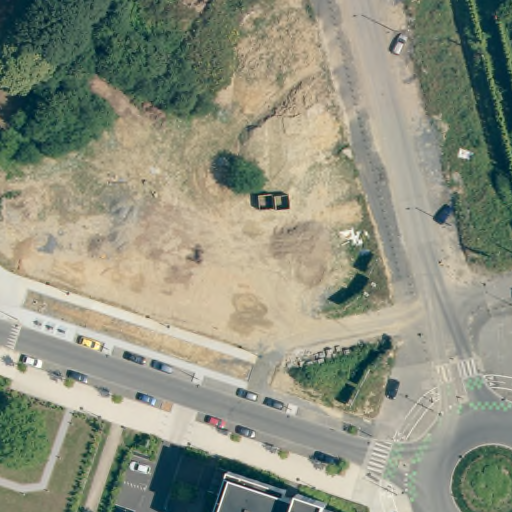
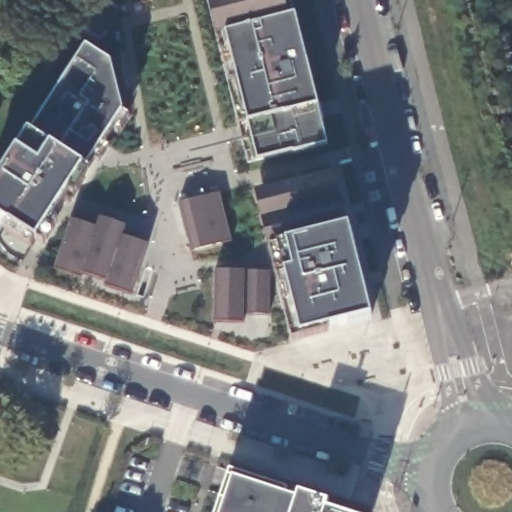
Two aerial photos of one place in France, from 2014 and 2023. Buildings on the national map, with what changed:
new [(246,122),(223,31),(216,33),(207,0),(289,0),(292,16),(317,108),(326,145),(259,161),(246,122)]
unchanged [(478,44),(482,43),(483,49),(479,50),(478,44)]
new [(83,166),(35,240),(0,217),(0,175),(15,150),(27,130),(31,133),(85,46),(110,62),(121,110),(83,166)]
new [(334,169),(348,230),(369,318),(299,335),(294,318),(282,275),(252,190),(334,169)]
new [(192,251),(180,204),(222,193),(233,241),(192,251)]
new [(132,296),(104,288),(106,281),(84,274),(80,280),(53,271),(70,221),(96,228),(99,217),(126,225),(123,236),(148,243),(132,296)]
new [(294,318),(247,315),(247,324),(212,322),(213,271),(282,275),(294,318)]
unchanged [(226,470),(284,489),(282,495),(293,499),(295,493),(324,503),(323,508),(335,512),(212,512),(226,470)]

